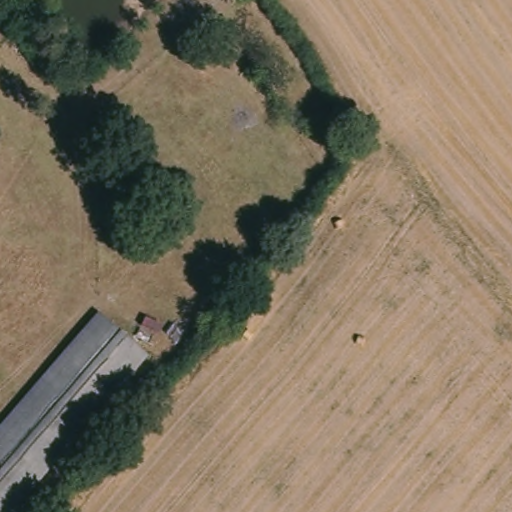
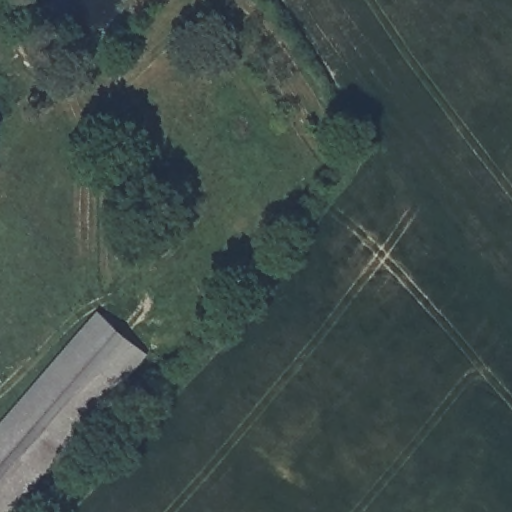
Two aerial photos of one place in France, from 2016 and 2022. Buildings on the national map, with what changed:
unchanged [(59,361),(101,315),(148,361),(102,410),(6,512),(0,512),(0,422),(59,361)]

